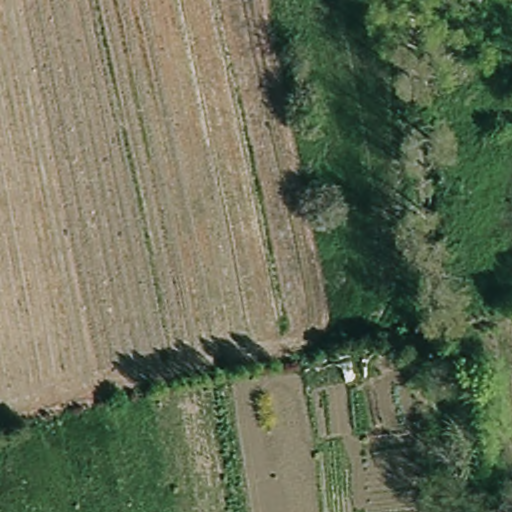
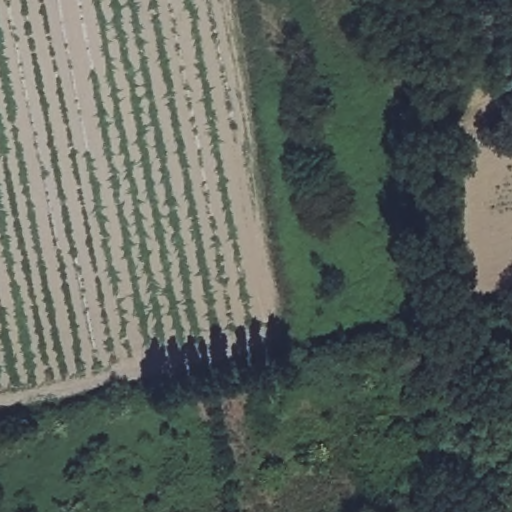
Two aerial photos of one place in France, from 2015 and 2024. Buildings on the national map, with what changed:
[]

